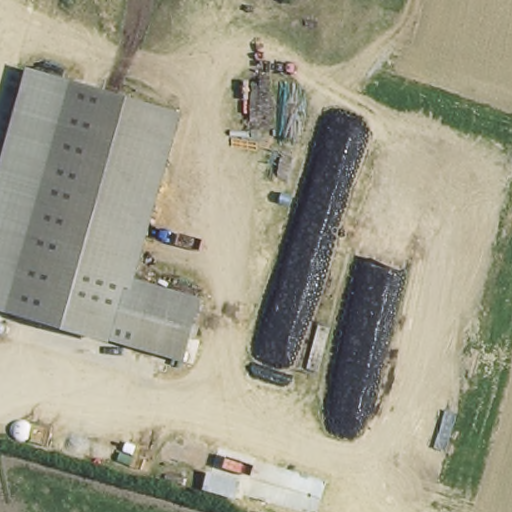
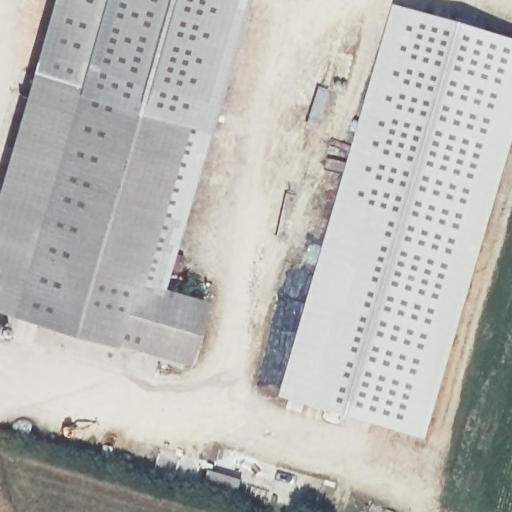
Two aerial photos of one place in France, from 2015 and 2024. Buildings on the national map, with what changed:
new [(175,109),(72,84),(33,73),(52,0),(245,0),(209,129),(172,119),(175,109)]
new [(398,9),(512,41),(512,161),(430,442),(284,401),(398,9)]
unchanged [(33,73),(72,84),(17,314),(0,309),(0,187),(33,73)]
unchanged [(17,314),(72,84),(175,109),(135,276),(120,339),(17,314)]
new [(135,276),(172,119),(209,129),(163,282),(135,276)]
unchanged [(208,293),(193,356),(120,339),(135,276),(208,293)]

